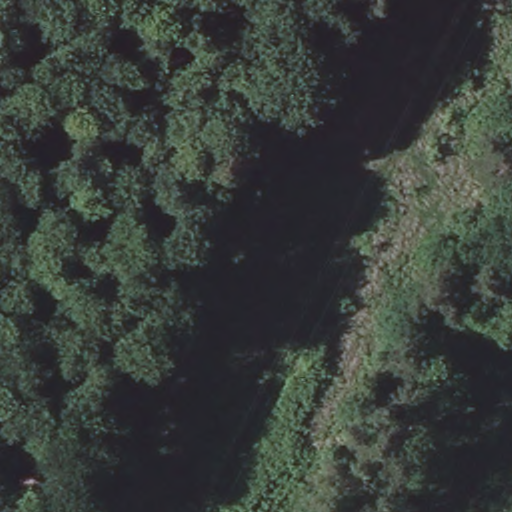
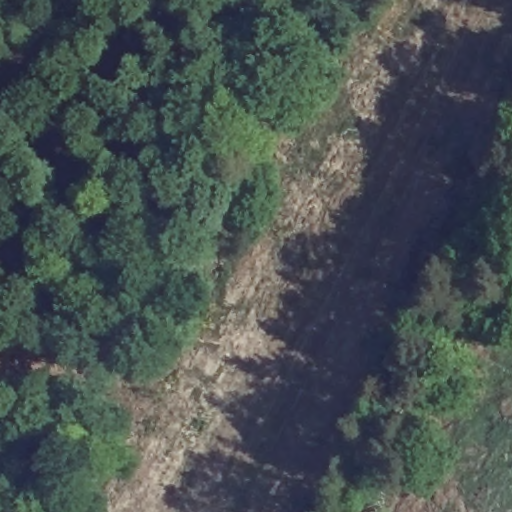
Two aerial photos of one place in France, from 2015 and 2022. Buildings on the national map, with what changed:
[]

